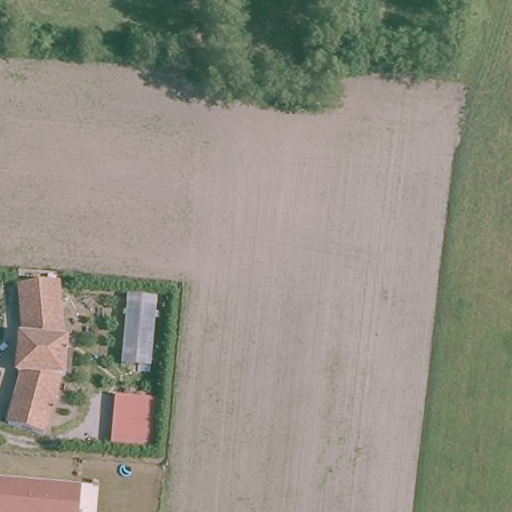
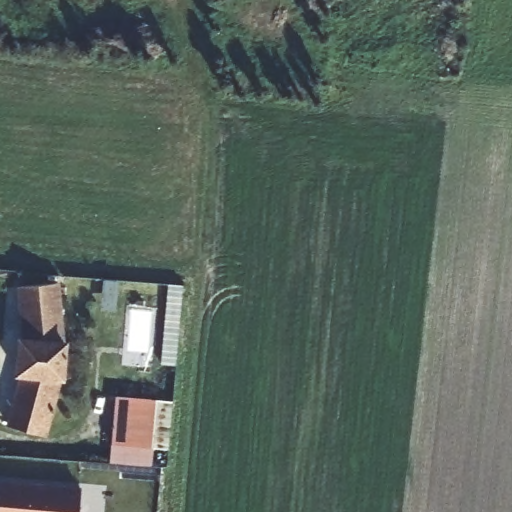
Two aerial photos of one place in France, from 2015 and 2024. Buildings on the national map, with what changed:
unchanged [(55,285),(61,346),(63,346),(61,381),(58,381),(43,439),(6,429),(20,377),(15,377),(18,342),(22,342),(17,289),(55,285)]
unchanged [(157,298),(151,369),(122,364),(126,295),(157,298)]
unchanged [(162,400),(157,449),(111,445),(115,397),(162,400)]
unchanged [(79,489),(76,512),(0,512),(0,482),(79,489)]

